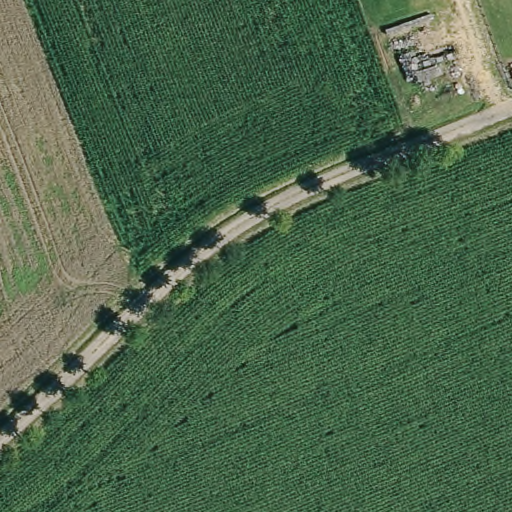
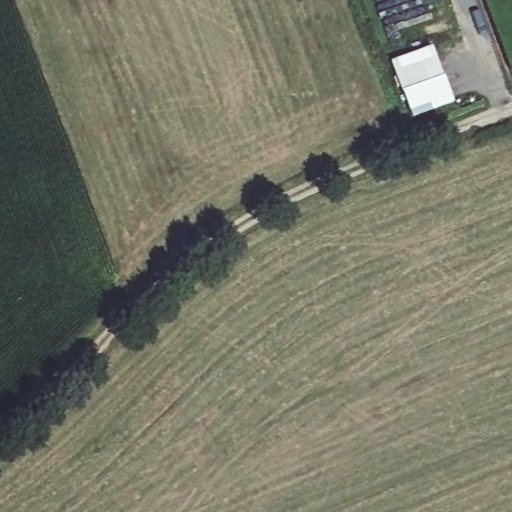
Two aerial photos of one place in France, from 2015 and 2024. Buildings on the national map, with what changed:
new [(393,65),(433,51),(452,104),(412,118),(403,93),(393,65)]

